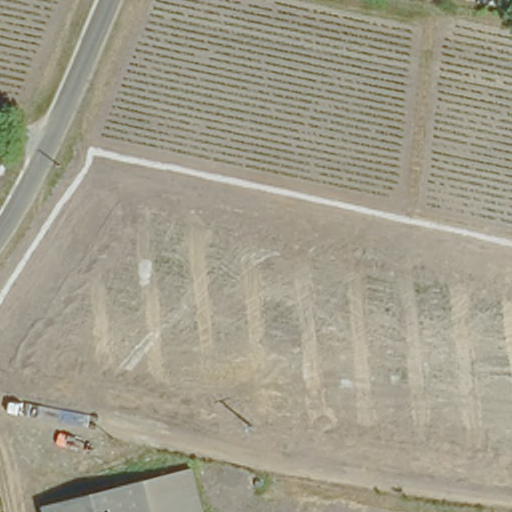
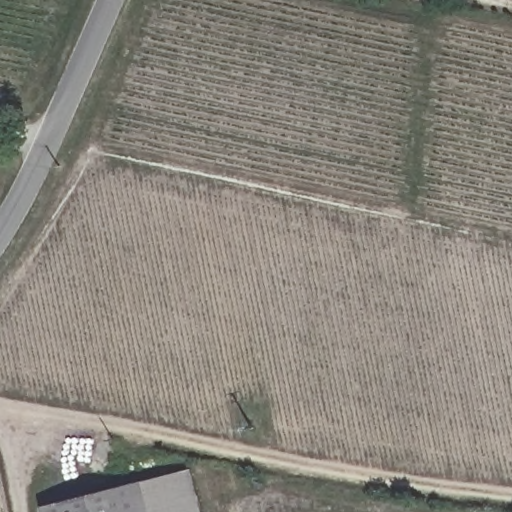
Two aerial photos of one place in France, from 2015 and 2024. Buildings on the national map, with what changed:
unchanged [(204,512),(151,512),(145,487),(143,480),(192,467),(204,512)]
unchanged [(143,480),(145,487),(151,512),(44,512),(42,502),(142,477),(143,480)]

